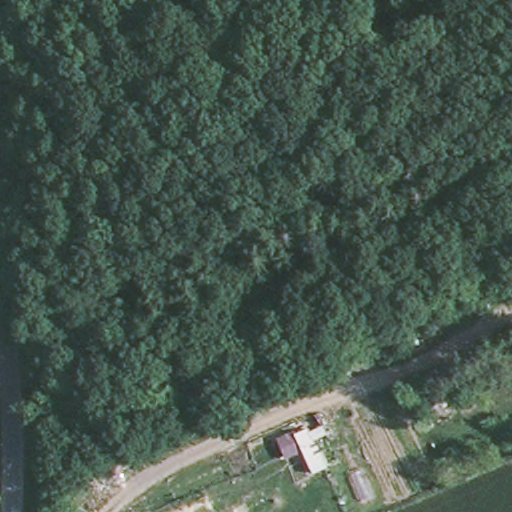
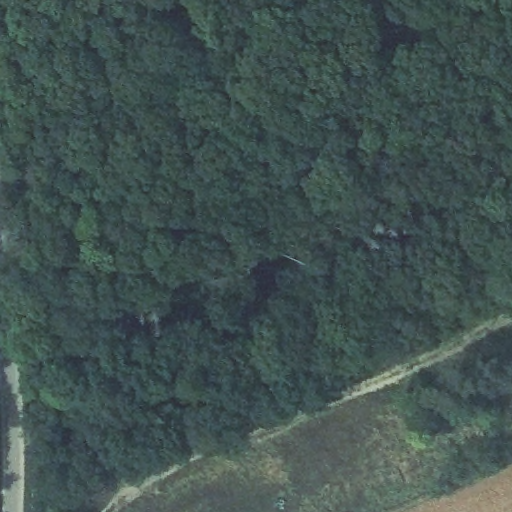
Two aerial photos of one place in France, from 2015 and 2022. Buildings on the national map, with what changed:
unchanged [(165,410),(152,385),(190,371),(200,396),(165,410)]

